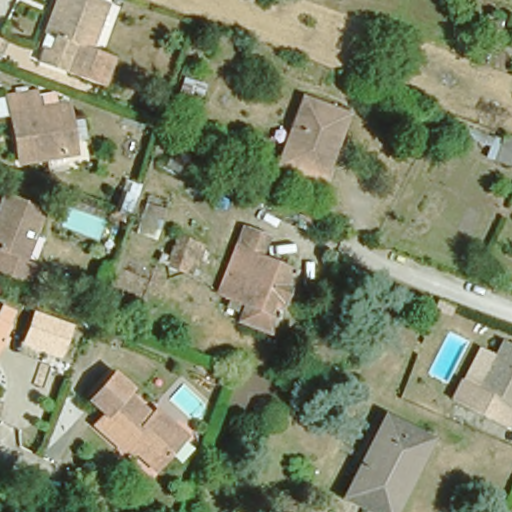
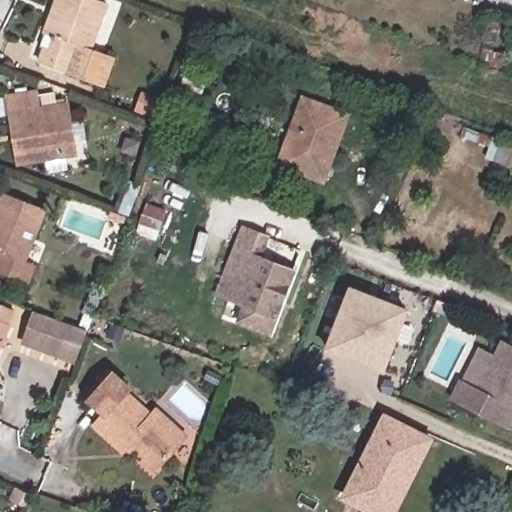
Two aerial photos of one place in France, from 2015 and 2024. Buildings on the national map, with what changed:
unchanged [(110,52),(98,81),(40,55),(43,44),(38,41),(44,27),(48,29),(58,5),(54,3),(55,0),(105,0),(88,42),(110,52)]
unchanged [(24,131),(22,105),(14,105),(12,86),(41,85),(42,102),(70,101),(74,151),(18,154),(16,131),(24,131)]
unchanged [(155,99),(150,111),(132,103),(137,90),(155,99)]
unchanged [(276,156),(302,93),(345,111),(319,172),(276,156)]
unchanged [(512,151),(507,166),(491,160),(481,156),(487,136),(498,140),(499,135),(512,140),(512,151)]
unchanged [(39,201),(19,252),(29,257),(22,274),(0,264),(0,185),(1,184),(39,201)]
unchanged [(270,231),(262,253),(292,264),(266,328),(236,315),(239,307),(233,305),(239,289),(222,283),(245,221),(270,231)]
new [(324,350),(349,285),(408,308),(383,373),(324,350)]
unchanged [(446,306),(443,314),(427,308),(430,299),(446,306)]
unchanged [(8,310),(2,324),(6,326),(0,336),(0,305),(8,310)]
new [(32,310),(86,329),(74,363),(21,345),(32,310)]
unchanged [(455,399),(464,382),(479,391),(505,341),(512,345),(512,417),(507,427),(455,399)]
demolished [(65,348),(59,367),(48,363),(53,345),(65,348)]
unchanged [(126,379),(122,385),(150,411),(155,405),(181,430),(153,461),(134,442),(127,436),(122,440),(120,443),(93,417),(103,405),(88,391),(111,366),(126,379)]
unchanged [(385,412),(427,436),(384,512),(343,488),(385,412)]

